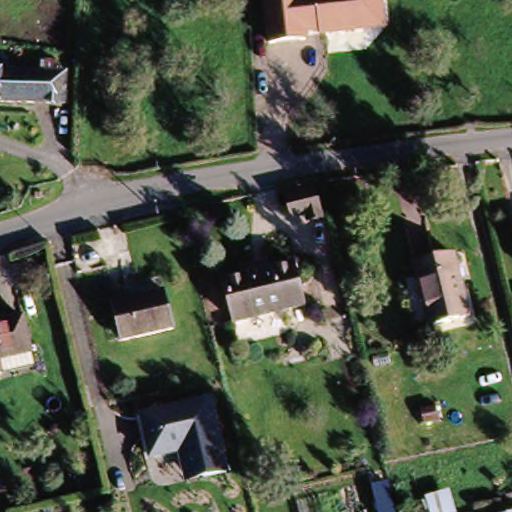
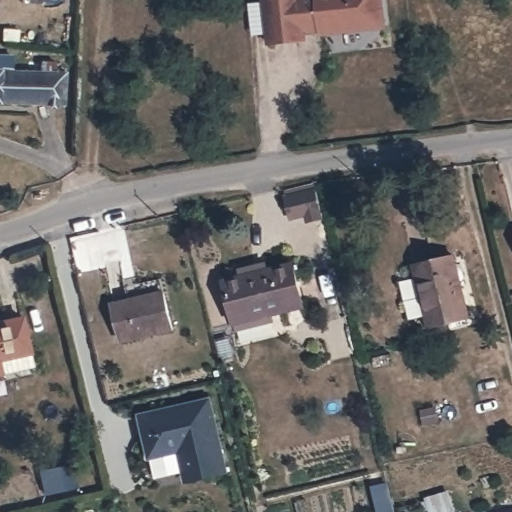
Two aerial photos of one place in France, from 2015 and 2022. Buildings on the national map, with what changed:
unchanged [(317,33),(308,34),(308,44),(266,47),(262,0),(384,0),(387,29),(318,37),(317,33)]
unchanged [(62,109),(0,107),(0,80),(64,83),(62,109)]
unchanged [(315,191),(322,220),(307,223),(306,217),(292,220),(287,198),(315,191)]
unchanged [(233,320),(225,275),(292,261),(303,305),(233,320)]
unchanged [(472,322),(428,330),(414,269),(459,261),(472,322)]
unchanged [(120,348),(110,305),(166,294),(174,336),(120,348)]
unchanged [(2,365),(5,377),(0,378),(0,327),(21,322),(28,359),(2,365)]
unchanged [(190,477),(186,456),(156,462),(147,419),(217,404),(233,477),(209,482),(192,486),(190,477)]

